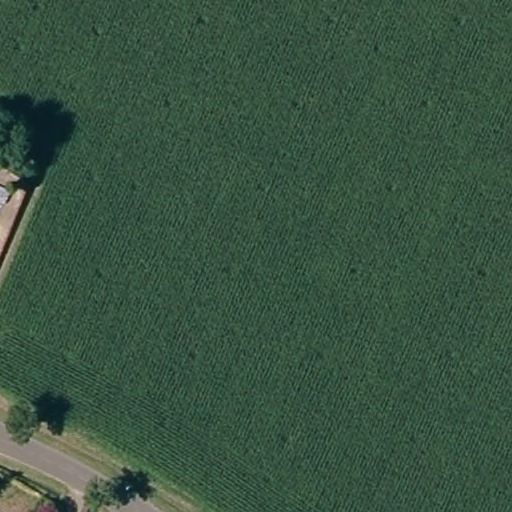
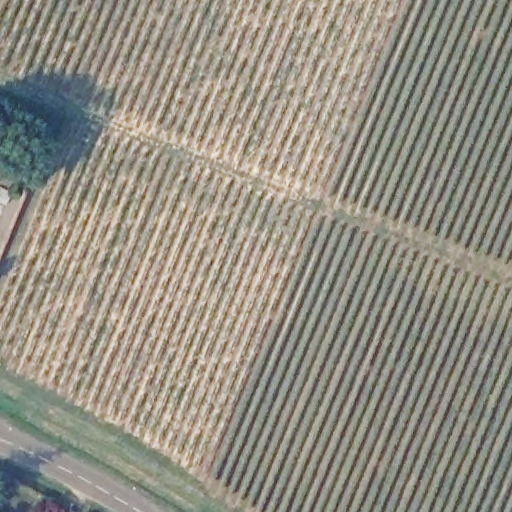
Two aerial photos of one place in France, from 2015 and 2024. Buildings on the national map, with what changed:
[]

